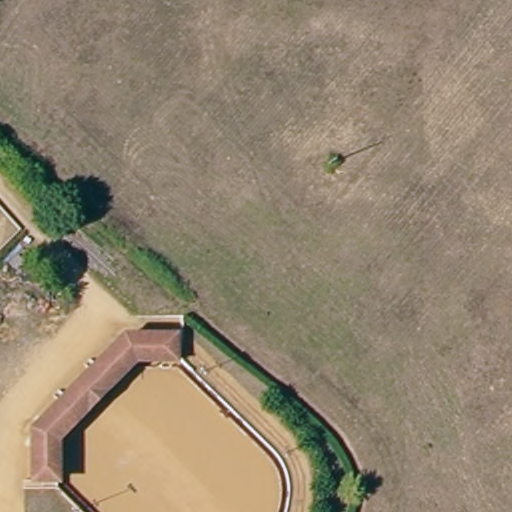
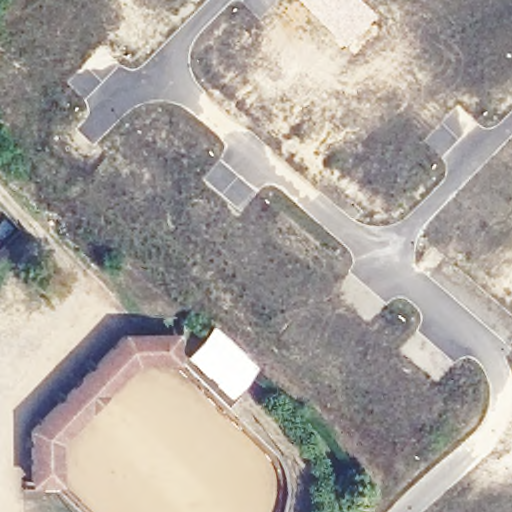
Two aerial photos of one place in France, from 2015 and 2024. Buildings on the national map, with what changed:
new [(343,46),(297,0),(360,0),(374,15),(343,46)]
unchanged [(287,506),(289,475),(262,433),(212,390),(184,362),(186,329),(274,418),(310,468),(309,512),(285,512),(287,506)]
unchanged [(133,361),(54,442),(54,481),(30,481),(30,430),(122,337),(173,336),(173,361),(133,361)]

